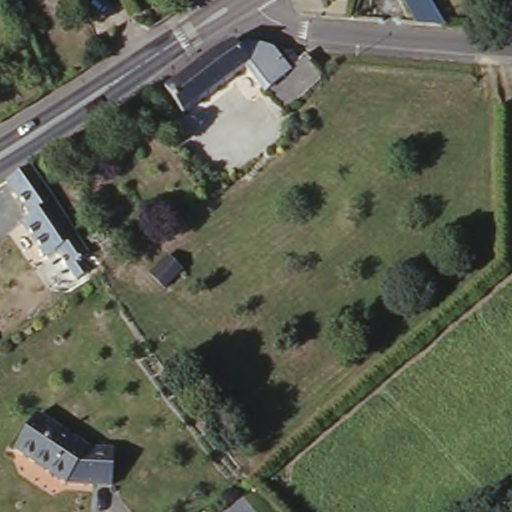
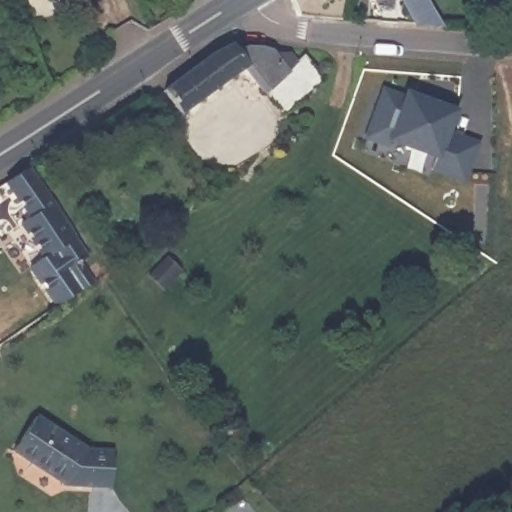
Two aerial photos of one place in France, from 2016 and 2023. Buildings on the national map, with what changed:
unchanged [(409,0),(430,0),(446,26),(431,25),(420,25),(406,2),(409,0)]
unchanged [(266,84),(249,60),(266,46),(276,47),(289,67),(266,84)]
unchanged [(164,91),(202,67),(241,49),(249,60),(182,113),(164,91)]
new [(431,157),(435,148),(401,135),(402,131),(387,125),(384,135),(364,127),(381,80),(402,87),(403,83),(452,101),(443,122),(474,135),(461,170),(431,157)]
unchanged [(84,252),(76,258),(84,267),(72,275),(2,182),(22,169),(84,252)]
unchanged [(30,413),(76,444),(109,448),(106,482),(54,477),(7,447),(30,413)]

